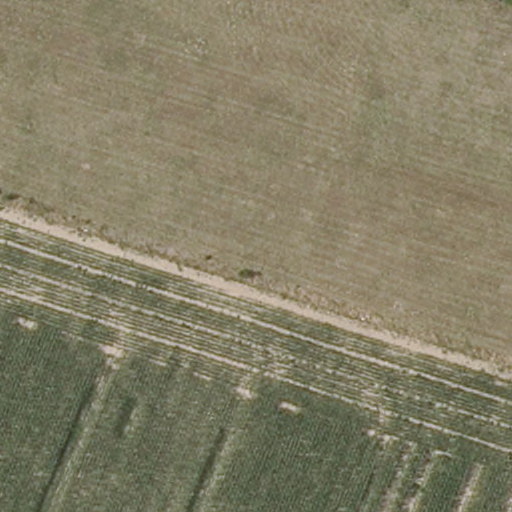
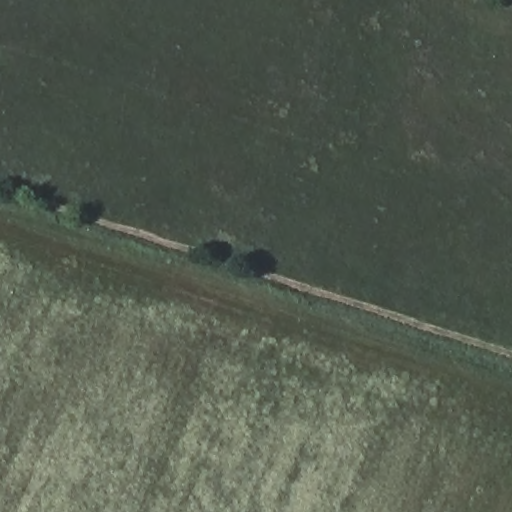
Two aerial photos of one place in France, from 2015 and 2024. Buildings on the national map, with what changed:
[]

